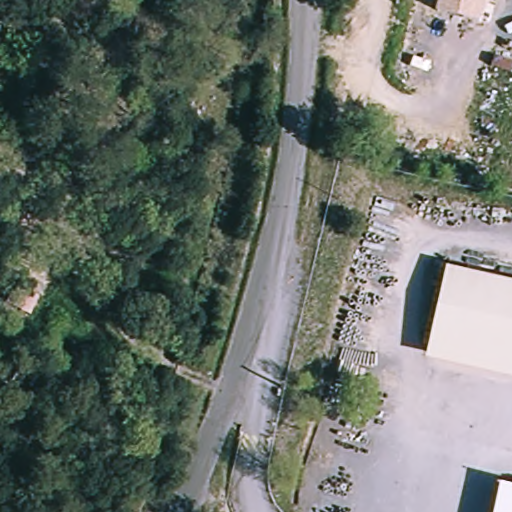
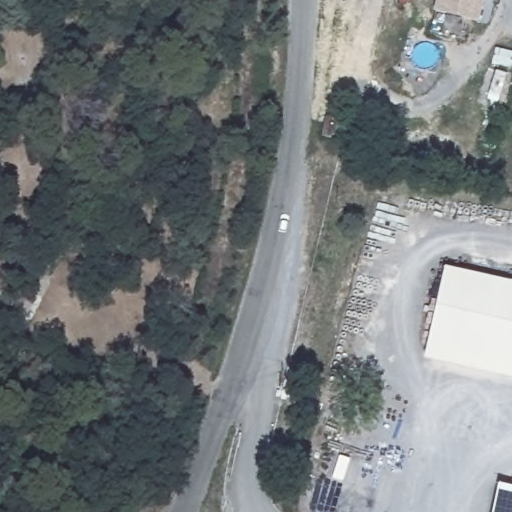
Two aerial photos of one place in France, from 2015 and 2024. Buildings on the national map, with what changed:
unchanged [(443,9),(445,0),(480,0),(476,16),(443,9)]
unchanged [(450,261),(512,277),(512,358),(430,337),(450,261)]
unchanged [(18,314),(26,285),(41,289),(33,318),(18,314)]
unchanged [(430,337),(512,358),(512,377),(425,355),(430,337)]
unchanged [(512,512),(492,512),(499,487),(512,490),(512,512)]

